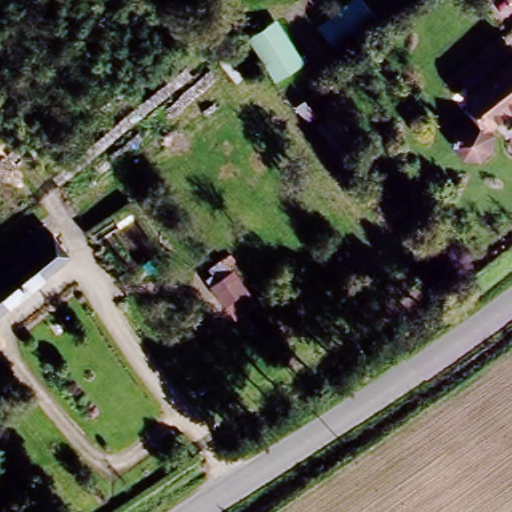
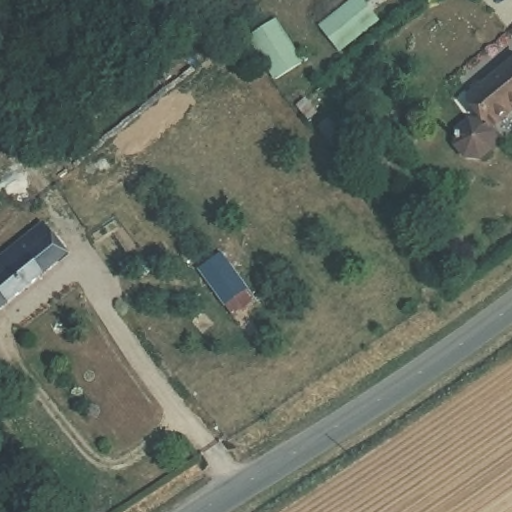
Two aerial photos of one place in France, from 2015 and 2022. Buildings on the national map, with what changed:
unchanged [(478,114),(463,93),(512,55),(512,102),(485,123),(478,114)]
unchanged [(489,129),(496,144),(496,149),(492,156),(482,164),(462,161),(457,153),(456,142),(458,136),(464,125),(469,122),(478,114),(489,129)]
unchanged [(0,314),(0,274),(9,268),(0,256),(0,249),(40,217),(71,256),(0,314)]
unchanged [(242,329),(189,262),(200,254),(206,261),(219,252),(266,311),(255,323),(242,329)]

